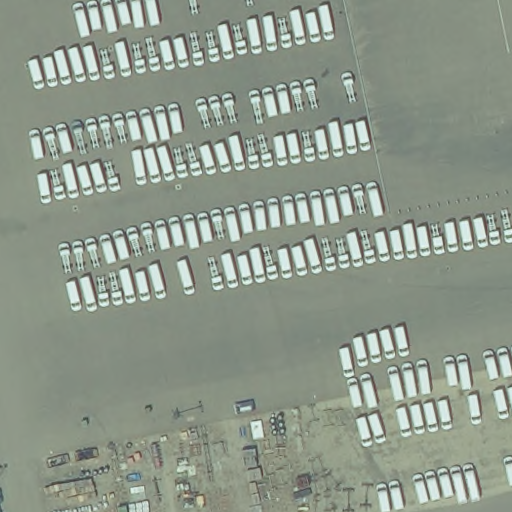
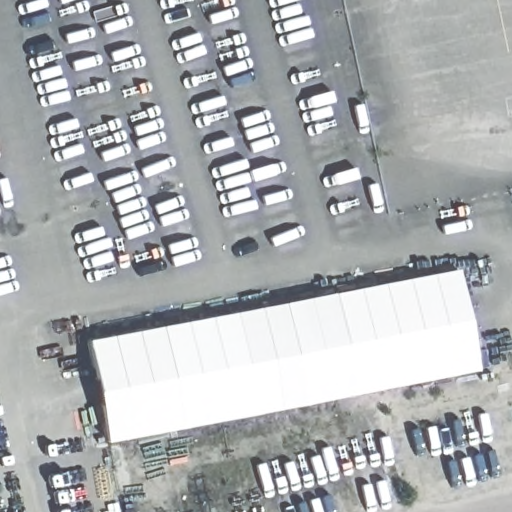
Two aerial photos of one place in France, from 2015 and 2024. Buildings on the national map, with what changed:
new [(464,267),(485,371),(106,445),(87,343),(464,267)]
demolished [(354,351),(57,419),(40,340),(337,271),(354,351)]

